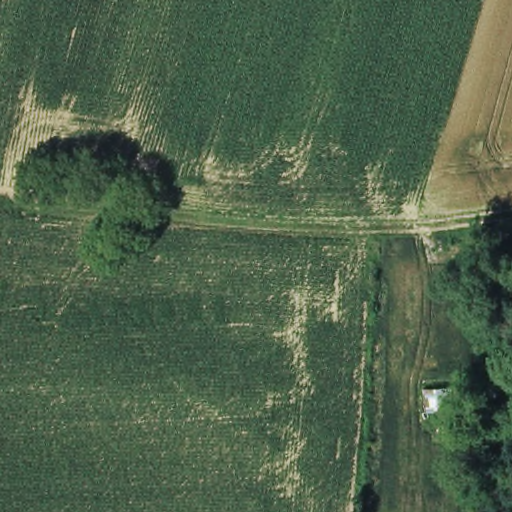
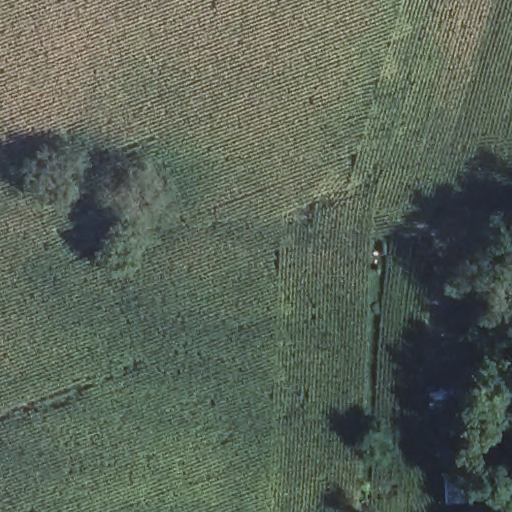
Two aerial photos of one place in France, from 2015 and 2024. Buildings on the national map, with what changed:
unchanged [(463,385),(463,411),(425,413),(423,388),(463,385)]

